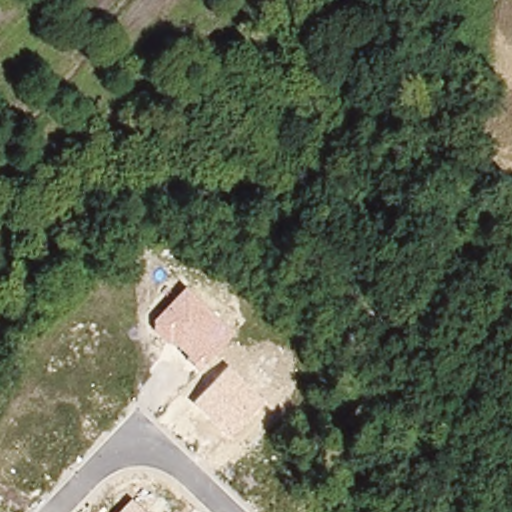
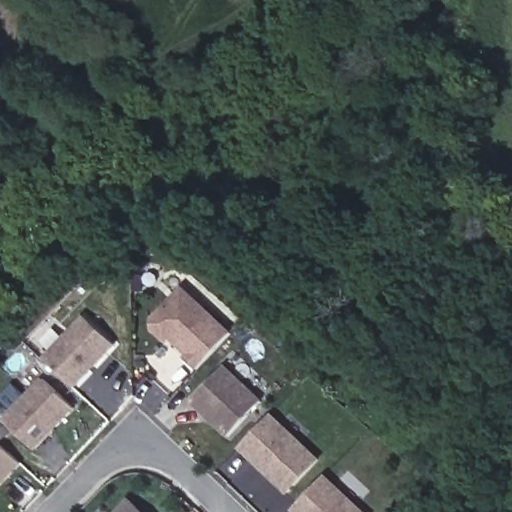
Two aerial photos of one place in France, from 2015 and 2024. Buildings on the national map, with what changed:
unchanged [(197,370),(185,358),(187,355),(170,340),(166,345),(152,329),(154,322),(153,321),(186,288),(232,333),(197,370)]
new [(78,389),(49,360),(90,318),(120,347),(78,389)]
unchanged [(229,435),(194,400),(228,365),(263,400),(229,435)]
new [(37,450),(8,421),(48,380),(78,410),(37,450)]
new [(289,493),(242,447),(273,415),(320,460),(289,493)]
new [(25,465),(0,490),(0,441),(25,465)]
new [(297,512),(295,510),(327,476),(364,512),(297,512)]
unchanged [(147,512),(117,512),(131,497),(147,512)]

